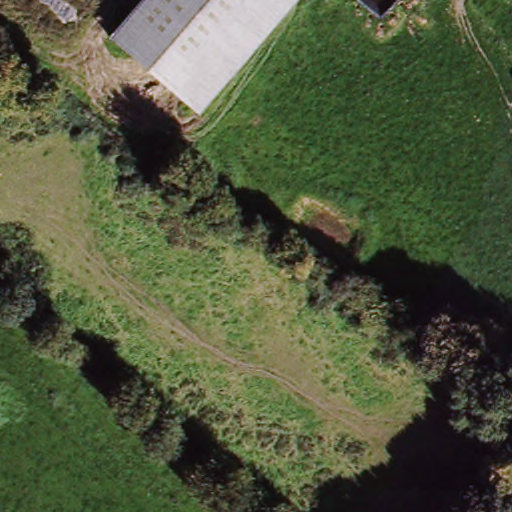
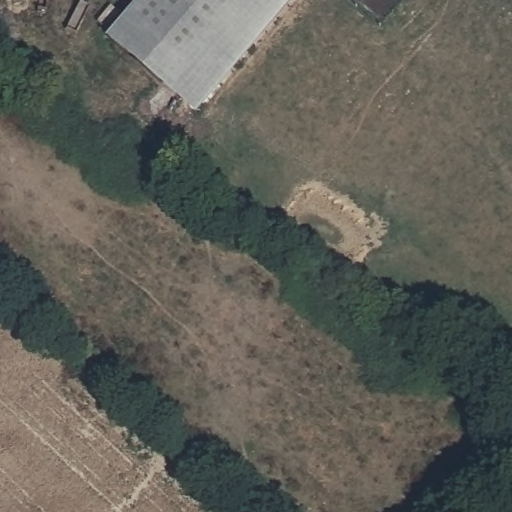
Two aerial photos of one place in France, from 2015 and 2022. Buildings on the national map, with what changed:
unchanged [(196,113),(107,37),(139,0),(295,0),(196,113)]

